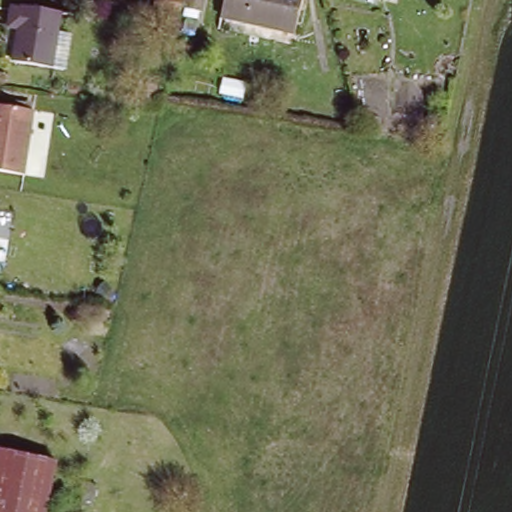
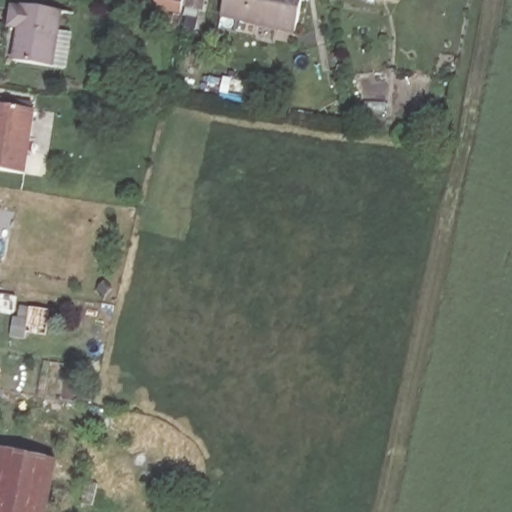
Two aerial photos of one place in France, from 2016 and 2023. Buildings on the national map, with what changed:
unchanged [(185,3),(183,11),(156,7),(158,0),(206,0),(204,8),(185,3)]
unchanged [(224,12),(226,0),(303,0),(296,30),(224,12)]
unchanged [(358,0),(380,0),(380,4),(358,0)]
unchanged [(78,10),(69,66),(30,60),(35,24),(24,23),(27,1),(78,10)]
unchanged [(26,169),(0,165),(0,103),(33,107),(26,169)]
unchanged [(0,464),(4,448),(25,452),(62,461),(51,512),(0,512),(0,464)]

